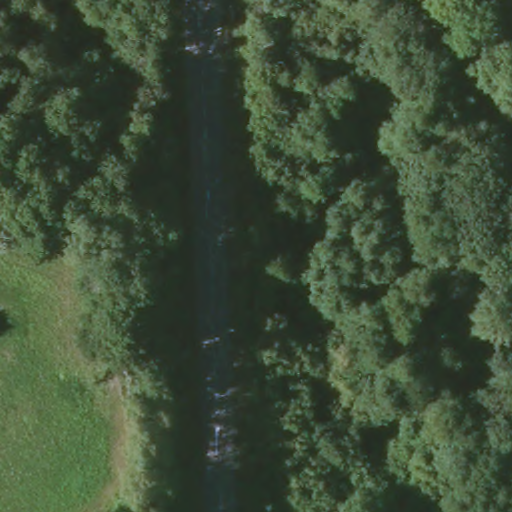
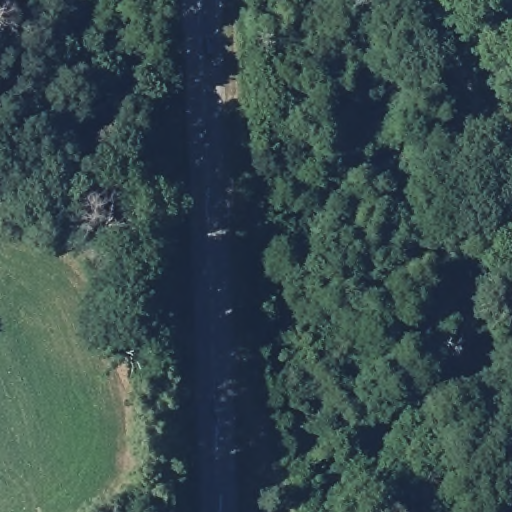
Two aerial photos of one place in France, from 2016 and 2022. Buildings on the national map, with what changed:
unchanged [(467,215),(487,217),(482,251),(462,248),(467,215)]

